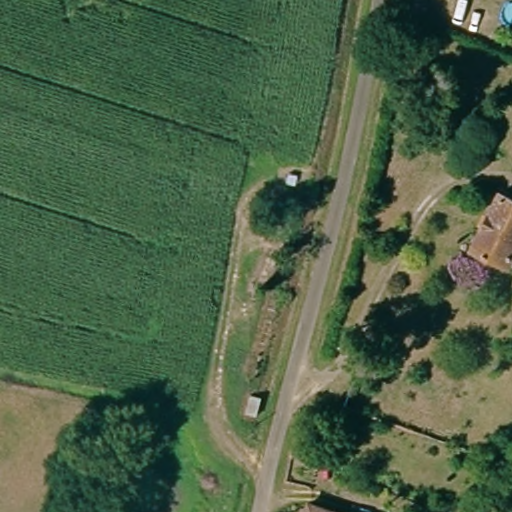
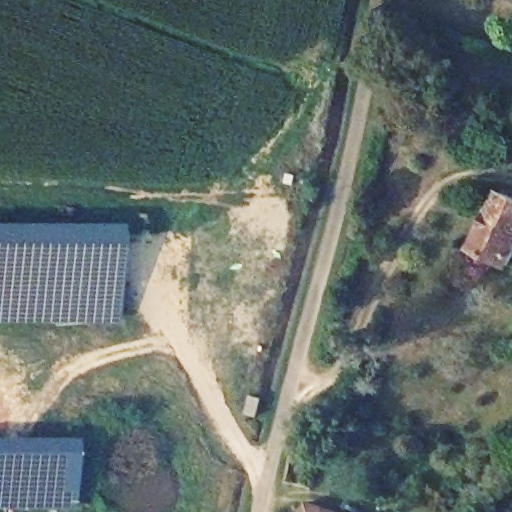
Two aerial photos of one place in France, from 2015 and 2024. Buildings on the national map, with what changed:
unchanged [(512,195),(512,262),(490,253),(476,246),(501,190),(512,195)]
new [(116,323),(0,324),(0,223),(116,222),(116,323)]
new [(56,438),(57,444),(60,444),(60,438),(71,438),(71,508),(0,508),(0,438),(56,438)]
unchanged [(306,512),(310,497),(358,512),(306,512)]

